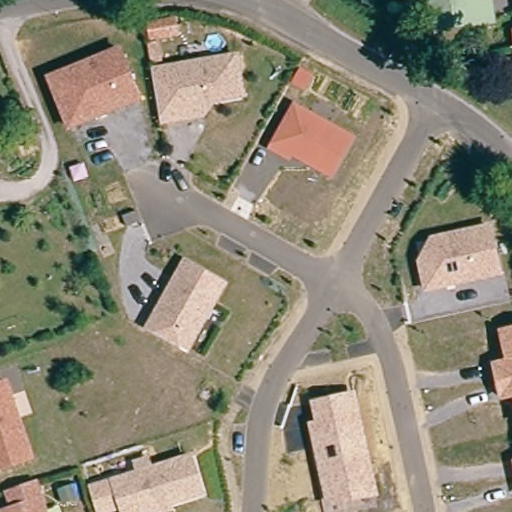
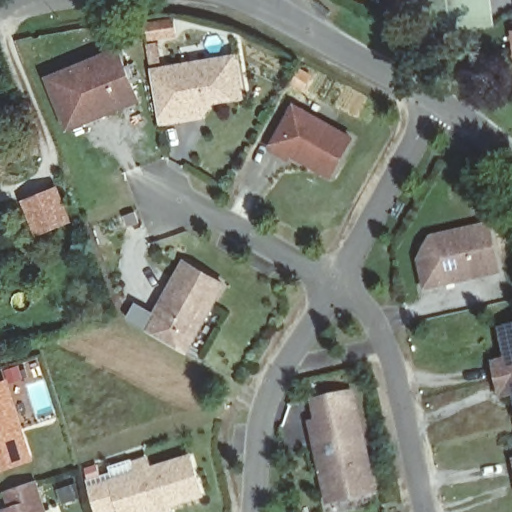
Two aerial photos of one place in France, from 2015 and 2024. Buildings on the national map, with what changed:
unchanged [(426,0),(444,0),(448,28),(430,31),(426,0)]
unchanged [(485,24),(448,28),(444,0),(481,0),(485,24)]
unchanged [(496,22),(485,24),(481,0),(493,0),(496,22)]
unchanged [(177,37),(154,41),(151,27),(175,23),(177,37)]
unchanged [(165,65),(154,67),(152,56),(150,47),(161,45),(165,65)]
unchanged [(141,99),(71,127),(51,77),(121,49),(141,99)]
unchanged [(181,123),(164,126),(155,74),(239,60),(245,100),(214,105),(204,120),(181,123)]
unchanged [(293,102),(356,137),(332,180),(292,157),(290,161),(266,150),(293,102)]
new [(57,188),(70,219),(43,230),(39,232),(26,201),(32,199),(57,188)]
unchanged [(143,220),(129,226),(125,215),(139,210),(143,220)]
unchanged [(430,289),(423,260),(433,238),(491,224),(503,271),(430,289)]
unchanged [(187,351),(160,335),(148,328),(186,261),(225,283),(187,351)]
unchanged [(500,402),(490,362),(505,359),(497,329),(512,326),(512,399),(500,402)]
unchanged [(32,457),(0,468),(0,383),(7,381),(32,457)]
unchanged [(327,505),(308,422),(314,422),(310,400),(357,390),(380,496),(327,505)]
unchanged [(140,512),(124,512),(122,505),(101,512),(99,512),(91,486),(140,471),(136,462),(149,458),(151,468),(192,455),(204,492),(140,512)]
unchanged [(46,512),(12,512),(14,511),(8,494),(36,484),(46,512)]
unchanged [(73,488),(77,501),(64,505),(60,492),(73,488)]

